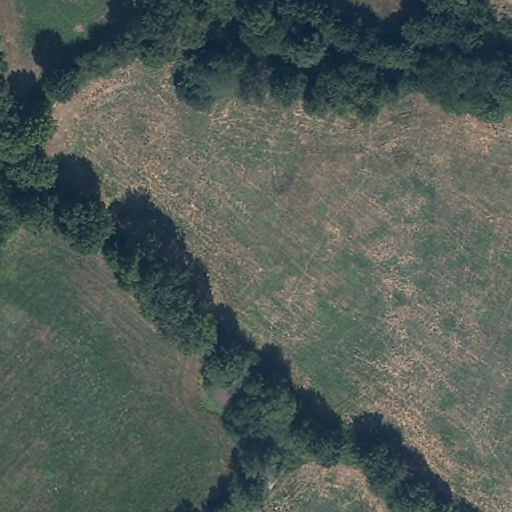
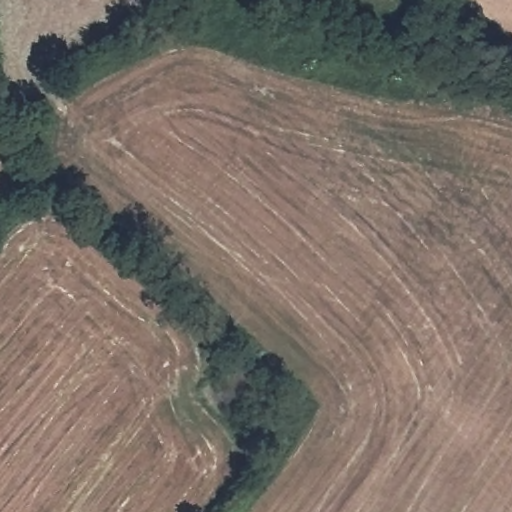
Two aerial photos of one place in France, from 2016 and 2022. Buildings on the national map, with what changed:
unchanged [(286,472),(273,490),(257,481),(271,464),(286,472)]

